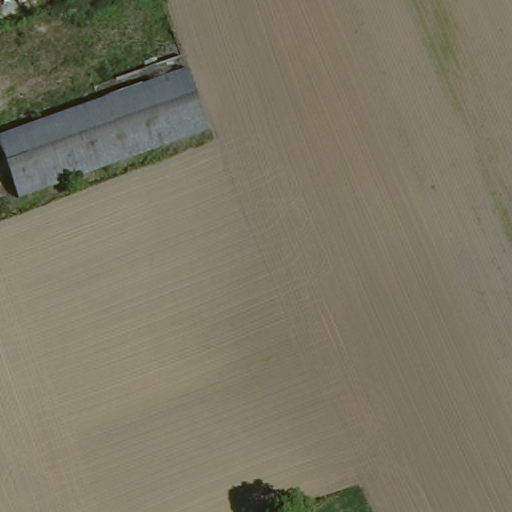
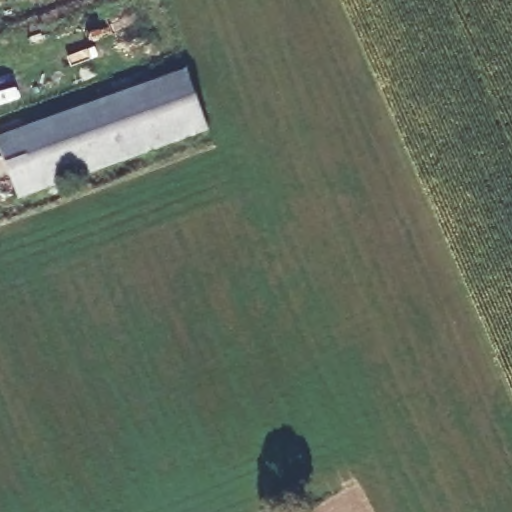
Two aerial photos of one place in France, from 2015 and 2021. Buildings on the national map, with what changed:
unchanged [(206,128),(207,130),(157,148),(82,175),(17,199),(0,152),(0,140),(99,105),(186,75),(206,128)]

